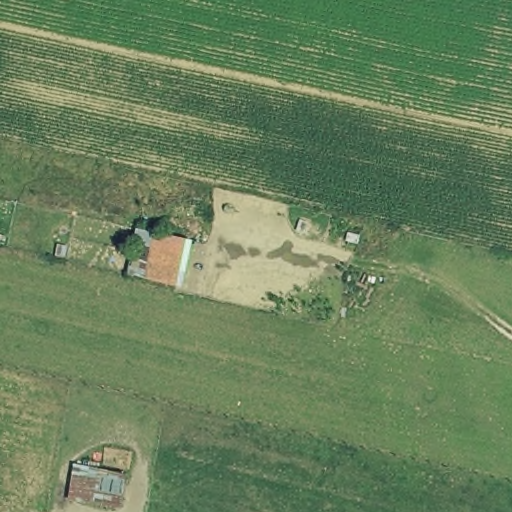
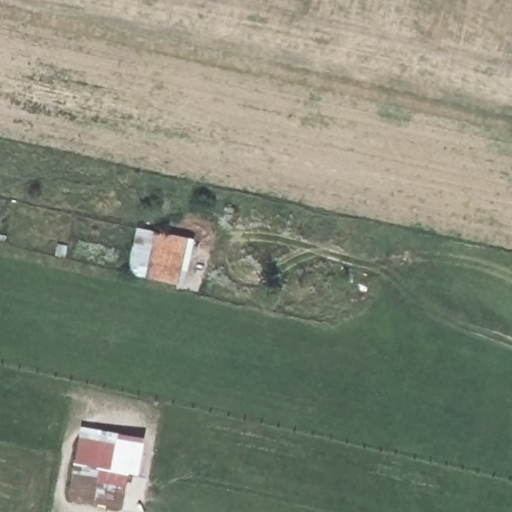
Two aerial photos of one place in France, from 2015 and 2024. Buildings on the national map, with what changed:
unchanged [(179,287),(125,274),(135,228),(194,239),(179,287)]
new [(81,434),(145,444),(138,477),(127,475),(127,471),(76,463),(81,434)]
unchanged [(120,507),(68,498),(74,462),(127,471),(120,507)]

